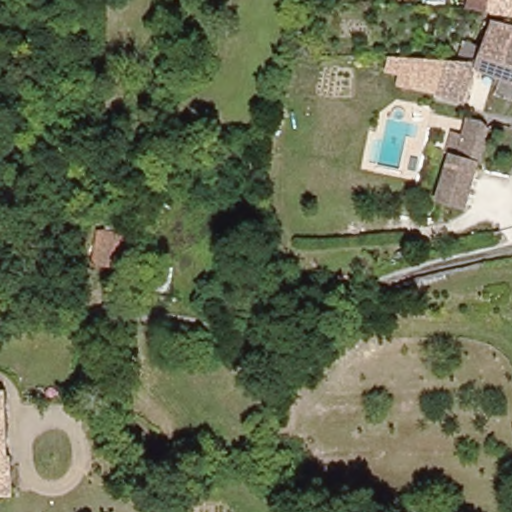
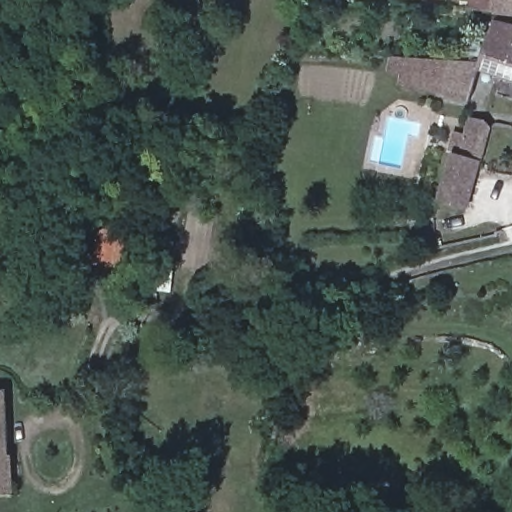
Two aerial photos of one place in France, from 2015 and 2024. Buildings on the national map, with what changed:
unchanged [(512,0),(512,16),(488,12),(488,9),(478,8),(463,8),(464,6),(465,0),(512,0)]
unchanged [(512,28),(512,82),(473,70),(488,23),(501,25),(512,28)]
unchanged [(439,95),(398,86),(400,75),(387,73),(390,55),(429,59),(450,63),(473,70),(467,92),(468,103),(439,95)]
unchanged [(458,140),(461,131),(475,135),(473,145),(469,156),(475,158),(460,205),(433,197),(447,150),(454,152),(458,140)]
unchanged [(93,225),(126,227),(123,258),(92,255),(93,225)]
unchanged [(0,388),(2,388),(4,452),(8,452),(7,493),(0,493),(0,388)]

